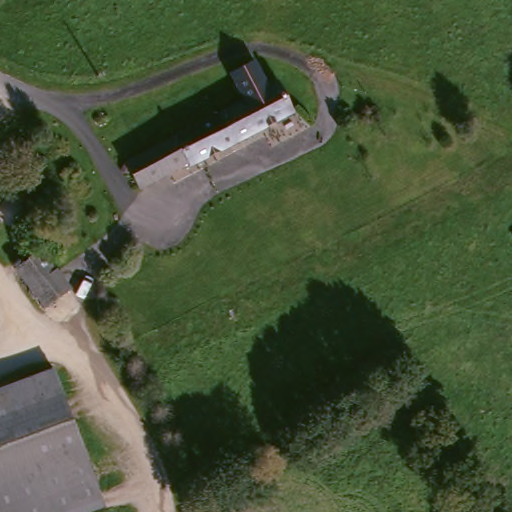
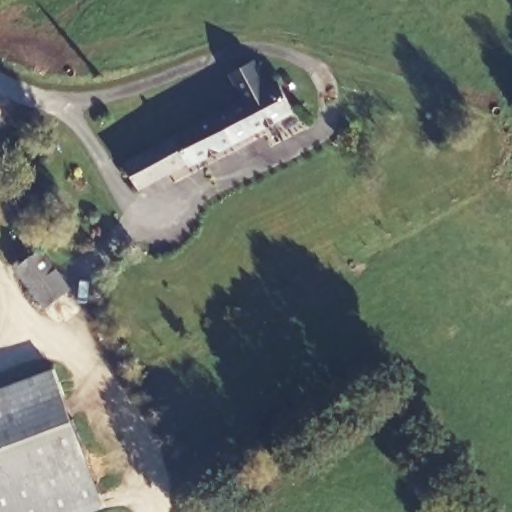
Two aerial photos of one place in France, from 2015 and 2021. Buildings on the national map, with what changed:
unchanged [(126,155),(238,108),(224,79),(251,69),(264,98),(273,94),(284,124),(181,168),(180,163),(136,182),(126,155)]
unchanged [(41,253),(68,286),(42,304),(18,269),(41,253)]
unchanged [(99,489),(44,512),(0,512),(0,383),(48,363),(99,489)]

